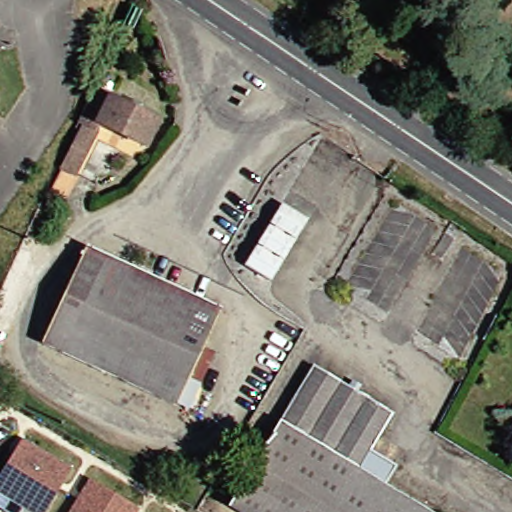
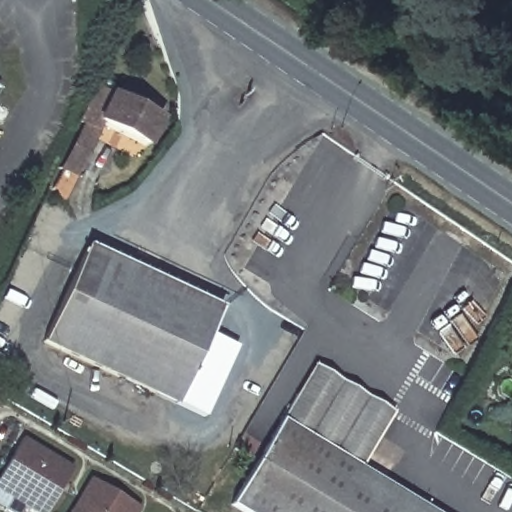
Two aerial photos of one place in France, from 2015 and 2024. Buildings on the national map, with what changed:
unchanged [(89,96),(102,102),(102,100),(155,127),(142,152),(96,129),(93,137),(92,136),(60,201),(48,194),(80,130),(74,127),(89,96)]
unchanged [(240,271),(278,208),(284,198),(309,214),(303,224),(266,287),(240,271)]
unchanged [(220,312),(176,405),(42,342),(86,249),(220,312)]
unchanged [(307,368),(385,415),(365,449),(392,466),(381,486),(425,512),(235,512),(224,506),(307,368)]
unchanged [(71,467),(45,512),(30,512),(22,508),(20,512),(7,512),(0,508),(0,475),(23,438),(71,467)]
unchanged [(140,508),(138,512),(68,512),(88,478),(140,508)]

